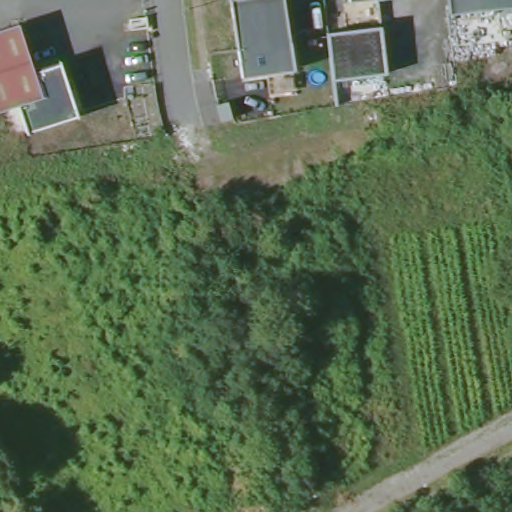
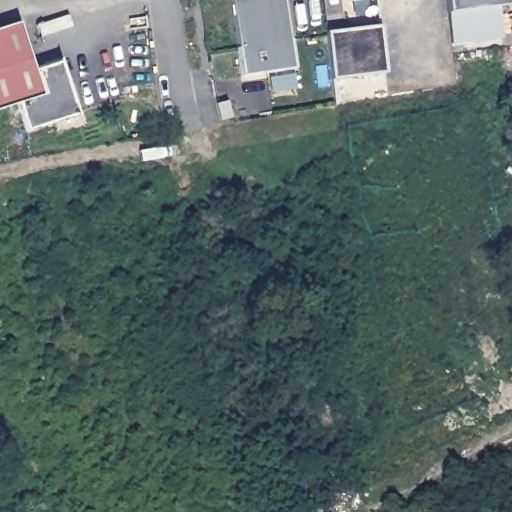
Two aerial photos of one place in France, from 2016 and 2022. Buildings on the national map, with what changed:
unchanged [(231,2),(231,0),(285,0),(294,69),(241,76),(231,2)]
unchanged [(345,0),(358,0),(345,1),(345,0)]
unchanged [(448,14),(446,0),(512,0),(512,7),(448,14)]
unchanged [(0,31),(18,25),(41,97),(0,111),(0,31)]
unchanged [(382,25),(389,74),(334,81),(328,32),(382,25)]
unchanged [(62,61),(82,118),(29,135),(19,105),(41,97),(33,71),(62,61)]
unchanged [(221,118),(221,117),(218,100),(229,99),(232,115),(233,116),(221,118)]

